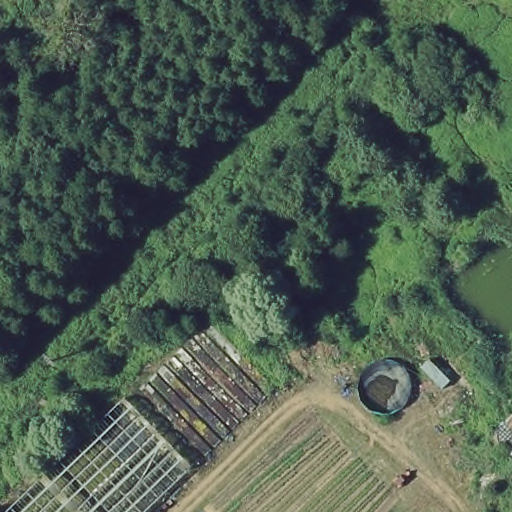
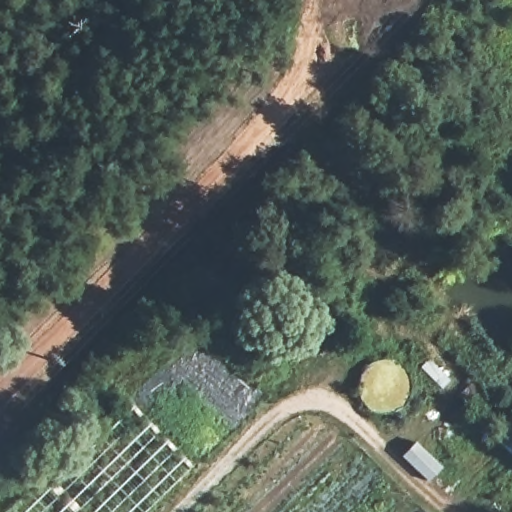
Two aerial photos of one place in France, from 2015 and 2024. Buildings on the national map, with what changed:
unchanged [(196,464),(147,512),(9,512),(129,395),(196,464)]
unchanged [(512,415),(512,454),(493,432),(512,415)]
unchanged [(434,512),(431,512),(433,510),(434,512)]

